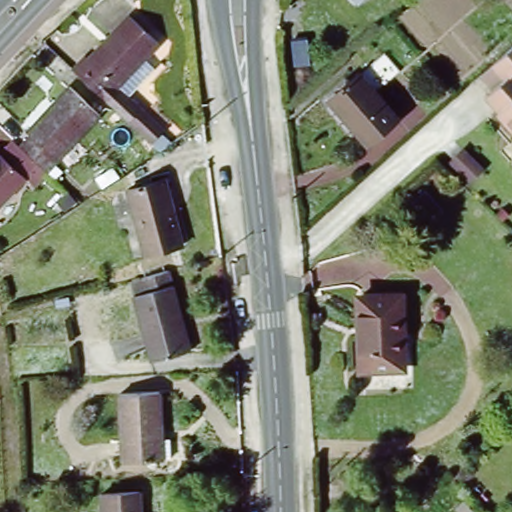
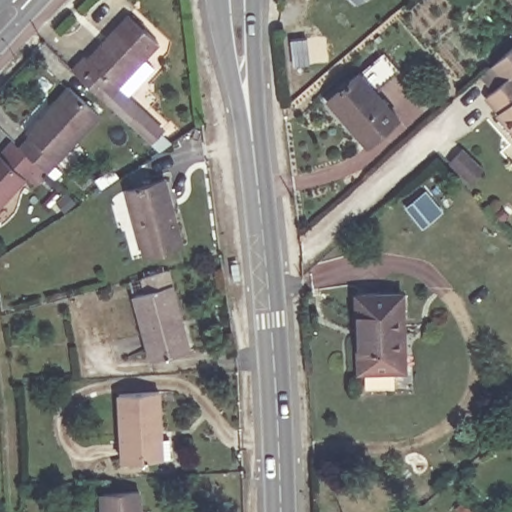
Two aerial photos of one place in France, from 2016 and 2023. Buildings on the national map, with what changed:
unchanged [(359,4),(355,0),(363,0),(359,4)]
unchanged [(88,59),(129,16),(159,43),(144,59),(151,66),(138,81),(131,74),(117,87),(161,129),(150,141),(74,71),(86,57),(88,59)]
unchanged [(366,143),(331,94),(361,72),(398,120),(366,143)]
unchanged [(509,132),(512,130),(498,114),(504,109),(491,92),(502,82),(512,73),(512,136),(509,132)]
unchanged [(39,164),(21,146),(31,135),(28,130),(71,86),(100,115),(46,171),(39,164)]
unchanged [(14,139),(21,146),(39,164),(0,205),(0,151),(1,152),(14,139)]
unchanged [(148,255),(129,191),(168,180),(186,243),(148,255)]
unchanged [(148,361),(135,296),(173,287),(186,352),(148,361)]
unchanged [(358,335),(354,334),(356,298),(397,299),(396,336),(391,336),(389,369),(385,373),(358,372),(358,335)]
unchanged [(172,438),(173,460),(125,462),(123,395),(163,393),(164,431),(165,439),(172,438)]
unchanged [(134,496),(135,512),(100,512),(99,497),(134,496)]

